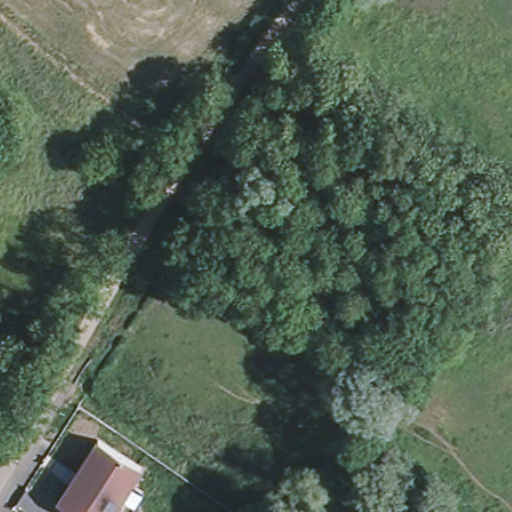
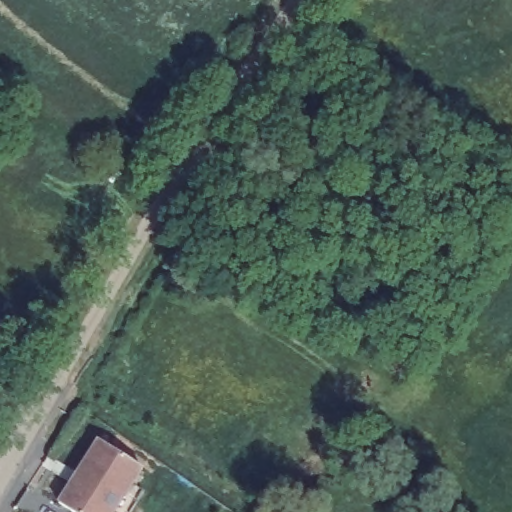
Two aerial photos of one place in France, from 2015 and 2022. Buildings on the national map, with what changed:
unchanged [(72,512),(55,501),(95,438),(137,465),(127,482),(140,488),(125,512),(72,512)]

